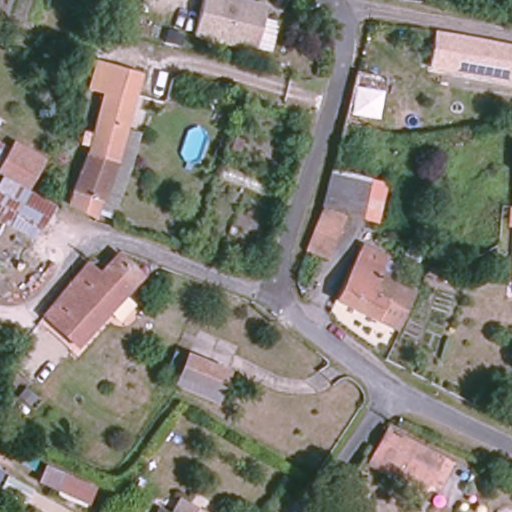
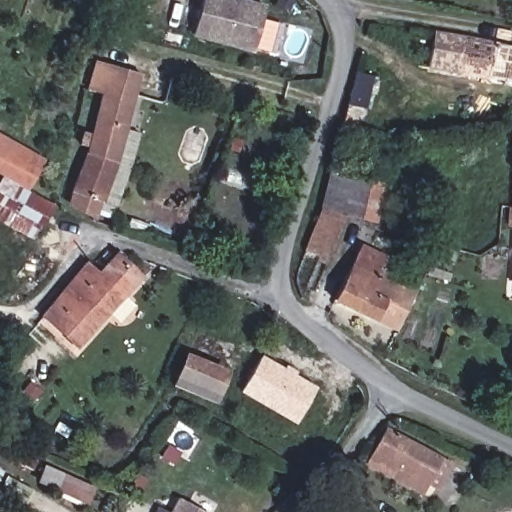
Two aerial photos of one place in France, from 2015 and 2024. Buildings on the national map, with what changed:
unchanged [(241,0),(263,5),(260,18),(253,46),(192,31),(199,0),(241,0)]
unchanged [(464,71),(433,65),(438,29),(469,34),(464,71)]
unchanged [(512,79),(464,71),(469,34),(512,43),(512,79)]
unchanged [(128,126),(141,130),(114,217),(68,203),(87,149),(102,93),(92,89),(98,61),(141,70),(128,126)]
unchanged [(397,139),(394,138),(344,124),(358,72),(410,85),(397,139)]
unchanged [(8,151),(15,140),(42,155),(27,184),(9,174),(0,169),(0,146),(8,151)]
unchanged [(328,260),(303,250),(321,209),(328,172),(382,185),(373,223),(345,215),(328,260)]
unchanged [(34,240),(0,220),(0,178),(2,175),(26,188),(56,204),(34,240)]
unchanged [(140,270),(86,346),(50,322),(87,267),(101,275),(117,253),(140,270)]
unchanged [(339,303),(357,258),(385,267),(384,272),(404,279),(413,283),(414,283),(400,323),(396,322),(388,319),(339,303)]
unchanged [(510,312),(512,313),(512,332),(503,329),(510,312)]
new [(261,356),(317,387),(295,424),(239,393),(261,356)]
unchanged [(213,404),(178,384),(194,359),(227,380),(213,404)]
unchanged [(368,467),(389,428),(434,452),(441,456),(422,495),(415,491),(368,467)]
unchanged [(10,475),(0,490),(0,469),(10,475)]
unchanged [(63,471),(97,487),(88,512),(87,512),(51,495),(63,471)]
unchanged [(341,503),(361,512),(337,512),(341,503)]
unchanged [(164,512),(160,512),(161,511),(164,512)]

